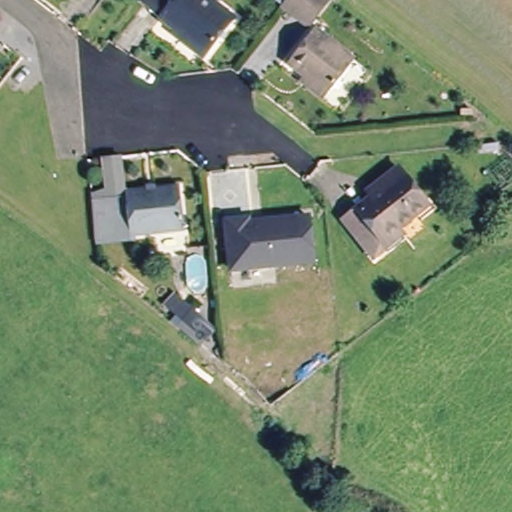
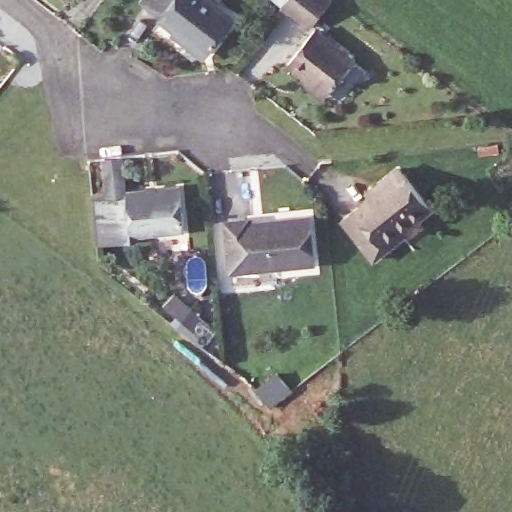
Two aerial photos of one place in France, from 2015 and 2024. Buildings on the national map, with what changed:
unchanged [(161,23),(162,22),(142,6),(147,0),(204,0),(234,23),(206,59),(161,23)]
unchanged [(282,1),(283,0),(327,0),(310,22),(282,1)]
unchanged [(315,24),(354,55),(328,89),(288,58),(315,24)]
unchanged [(388,237),(373,248),(343,210),(373,187),(368,181),(398,158),(428,196),(397,221),(401,226),(388,237)]
unchanged [(127,199),(126,192),(180,187),(184,231),(131,236),(127,199)]
unchanged [(127,199),(131,236),(131,239),(96,243),(92,202),(127,199)]
unchanged [(512,205),(512,207),(511,205),(512,205)]
unchanged [(226,220),(248,218),(249,222),(309,216),(314,261),(231,269),(226,220)]

